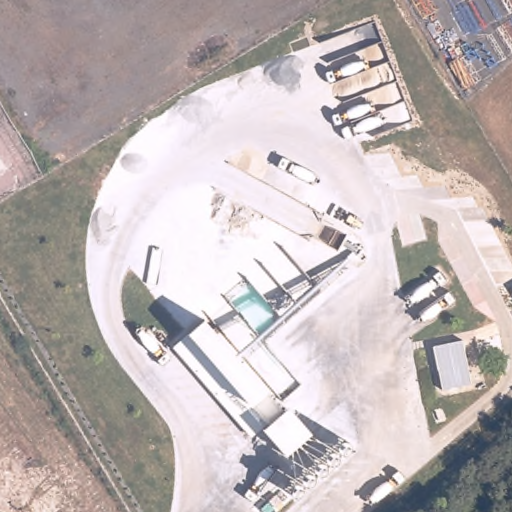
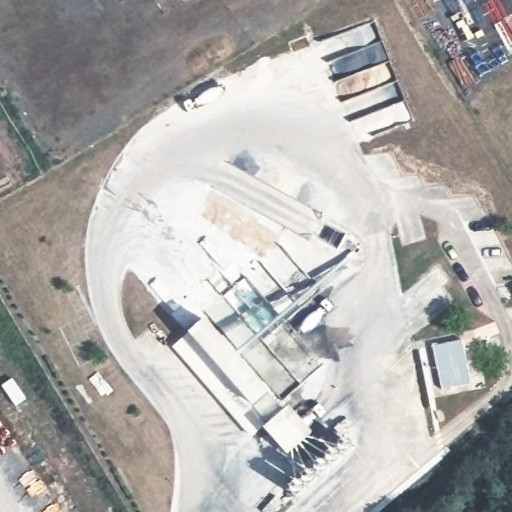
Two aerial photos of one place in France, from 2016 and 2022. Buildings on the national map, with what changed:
unchanged [(268,399),(253,412),(238,425),(175,354),(205,327),(268,399)]
unchanged [(462,341),(469,381),(439,387),(431,346),(462,341)]
unchanged [(285,418),(289,415),(313,441),(290,461),(267,434),(270,431),(253,412),(268,399),(285,418)]

